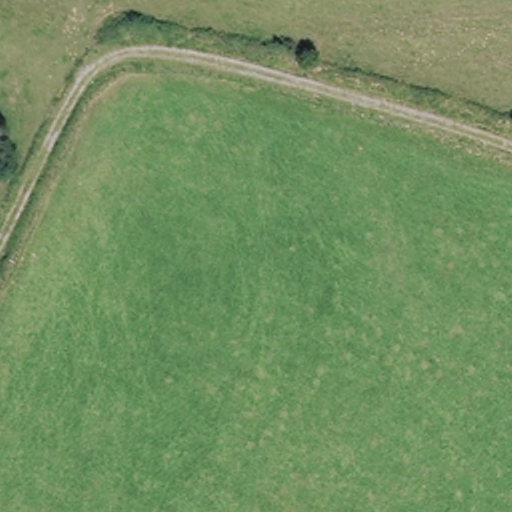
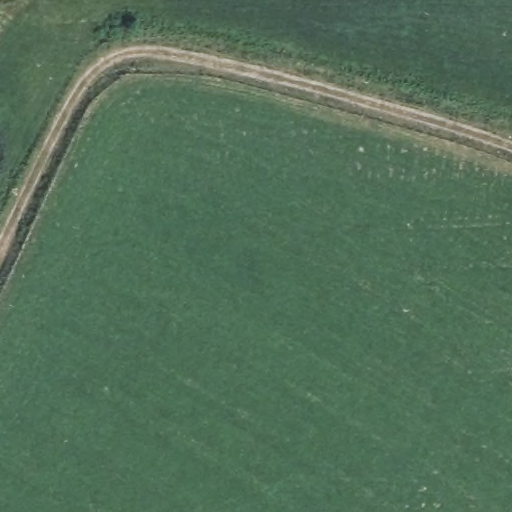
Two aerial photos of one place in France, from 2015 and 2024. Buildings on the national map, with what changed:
[]

